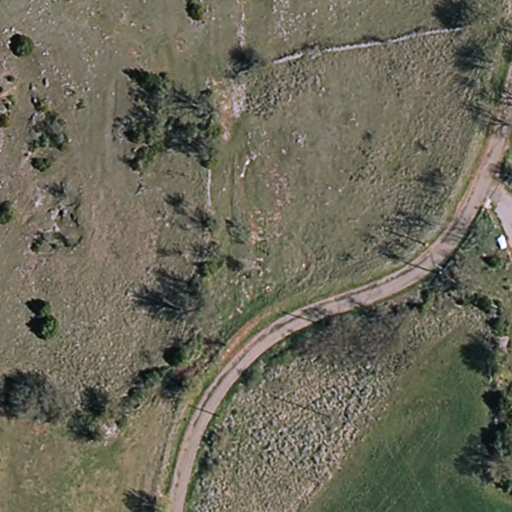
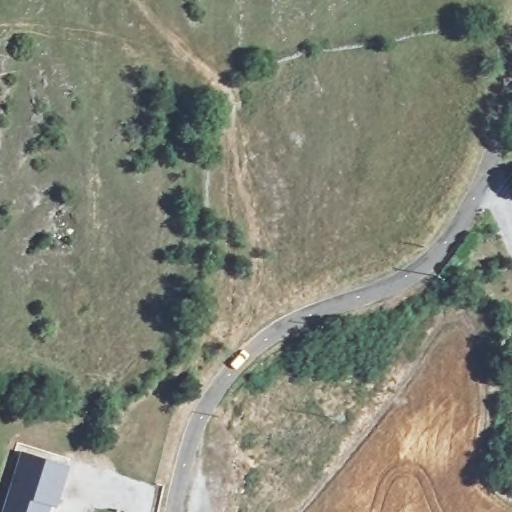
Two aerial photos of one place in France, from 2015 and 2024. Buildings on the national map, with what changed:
new [(69,468),(56,508),(51,506),(49,512),(5,512),(26,453),(69,468)]

